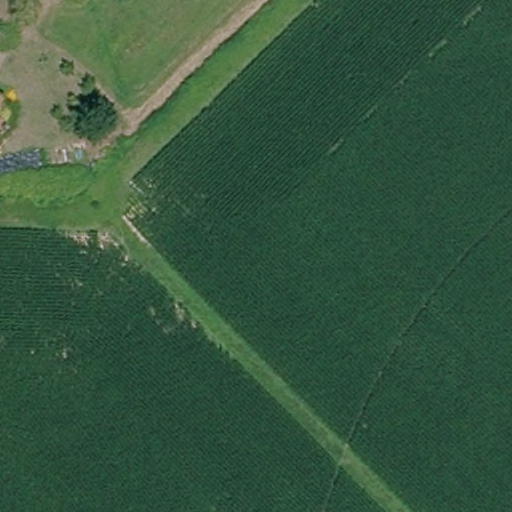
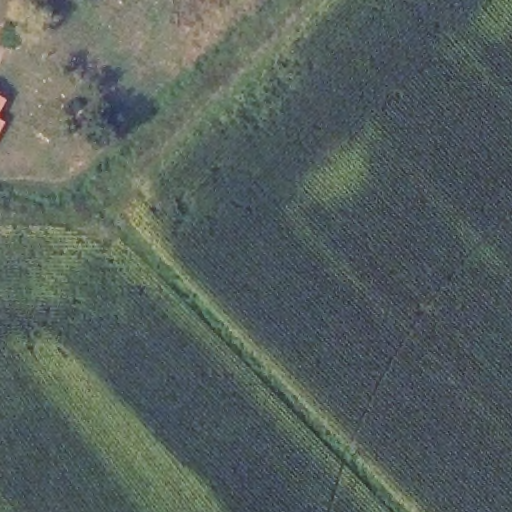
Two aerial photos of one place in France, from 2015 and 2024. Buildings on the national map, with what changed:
[]

